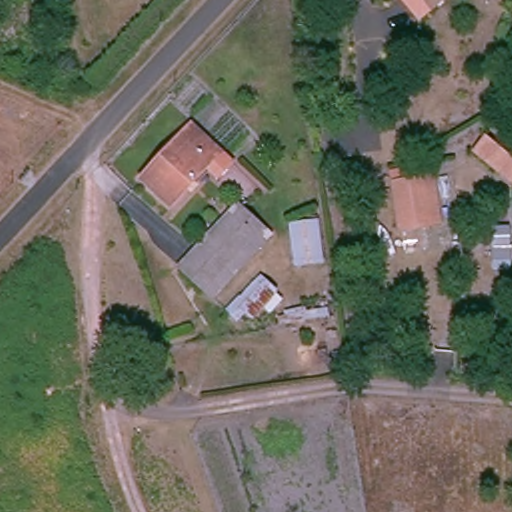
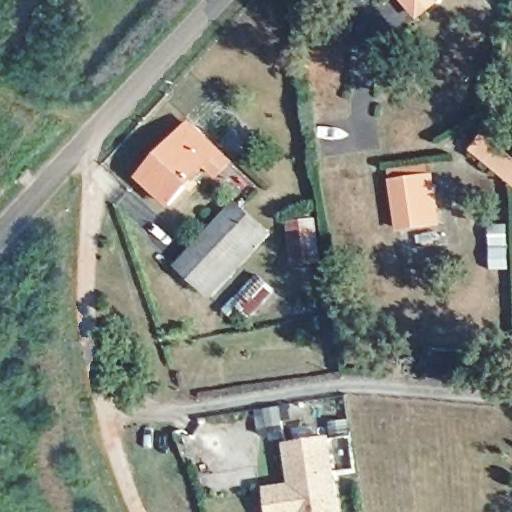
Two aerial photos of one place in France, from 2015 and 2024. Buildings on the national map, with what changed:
unchanged [(441,0),(447,0),(444,3),(441,0)]
unchanged [(218,154),(170,207),(140,179),(188,126),(218,154)]
unchanged [(512,158),(512,189),(466,150),(482,133),(512,158)]
unchanged [(384,176),(433,170),(439,225),(391,232),(384,176)]
unchanged [(207,286),(188,269),(237,216),(256,233),(207,286)]
unchanged [(321,263),(289,268),(283,222),(315,218),(321,263)]
unchanged [(248,324),(239,315),(232,322),(221,311),(257,274),(275,292),(248,324)]
new [(331,436),(344,512),(270,512),(265,487),(290,484),(285,442),(331,436)]

